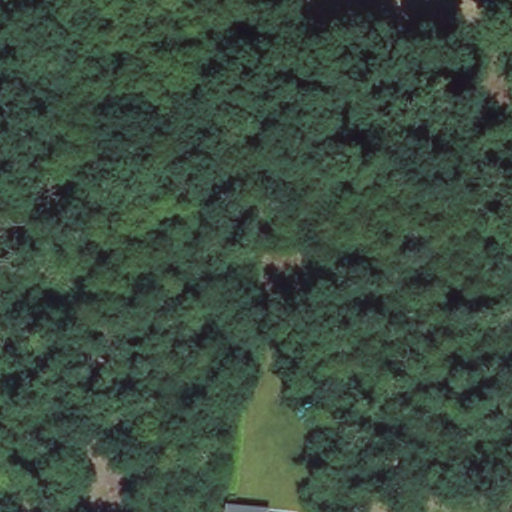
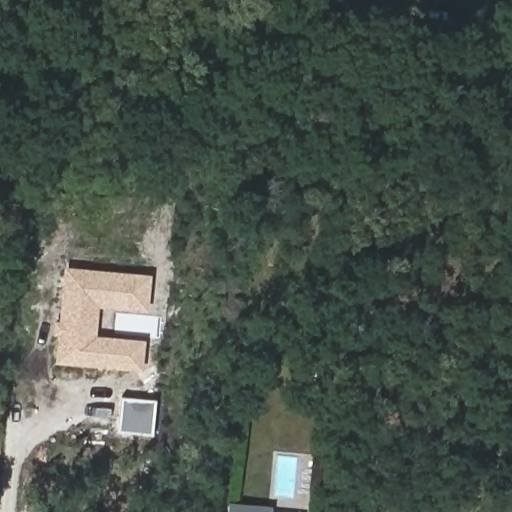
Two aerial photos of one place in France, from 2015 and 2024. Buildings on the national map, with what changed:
new [(147,340),(144,372),(56,365),(65,268),(152,277),(149,312),(100,307),(97,336),(147,340)]
unchanged [(229,503),(275,506),(275,512),(229,512),(229,503)]

